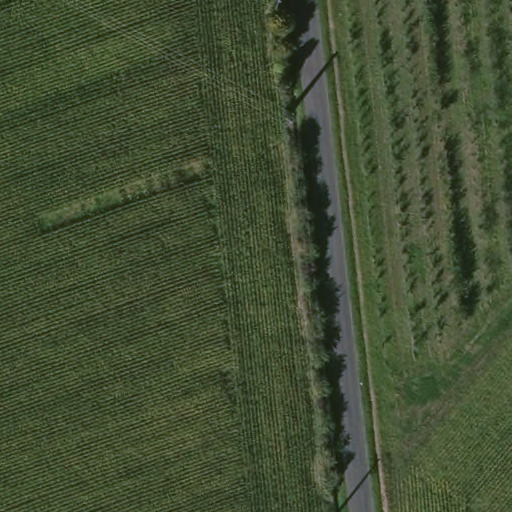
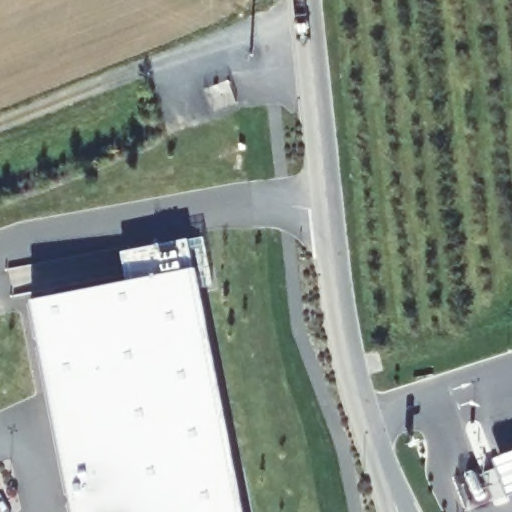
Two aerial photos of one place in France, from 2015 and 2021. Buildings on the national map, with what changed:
new [(121,250),(187,238),(193,267),(240,512),(71,512),(30,300),(127,281),(121,250)]
new [(494,469),(505,496),(494,500),(484,473),(494,469)]

